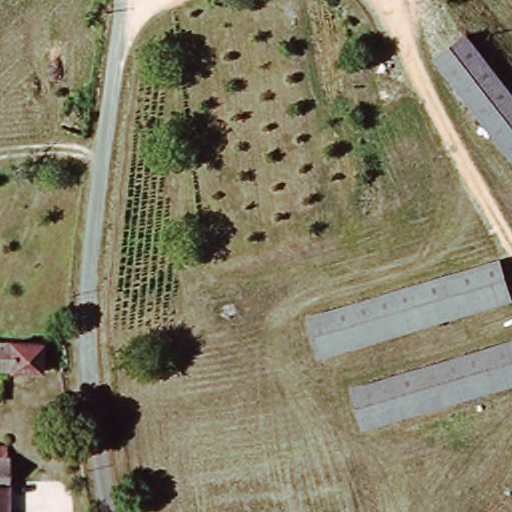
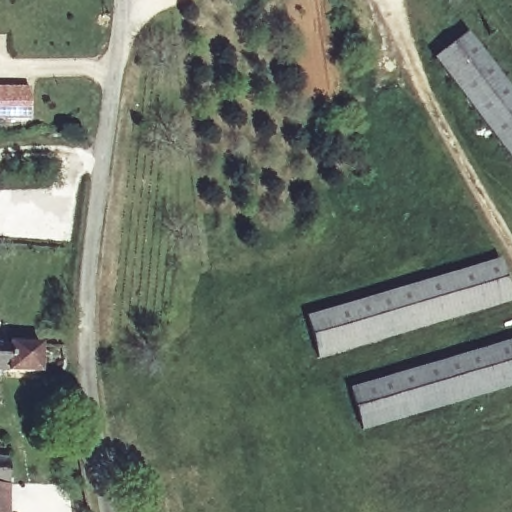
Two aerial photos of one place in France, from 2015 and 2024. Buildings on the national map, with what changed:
unchanged [(467,35),(473,43),(487,32),(506,56),(492,67),(512,93),(512,155),(438,56),(467,35)]
new [(32,120),(9,120),(0,120),(0,88),(9,88),(32,88),(32,120)]
unchanged [(505,261),(512,284),(512,301),(325,357),(314,318),(505,261)]
unchanged [(0,343),(52,345),(51,371),(0,369),(0,343)]
unchanged [(370,430),(358,391),(512,345),(512,388),(370,430)]
unchanged [(15,512),(0,512),(0,459),(16,459),(15,512)]

